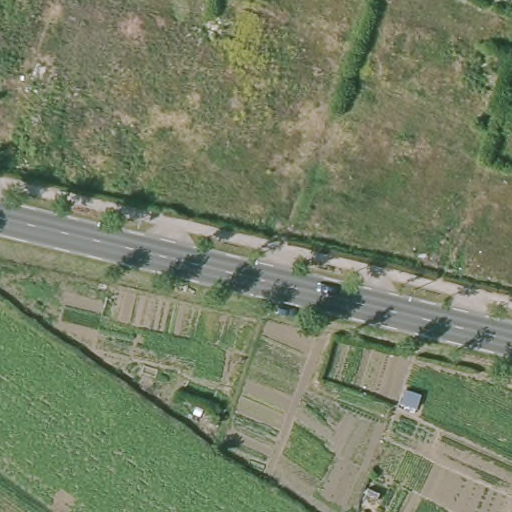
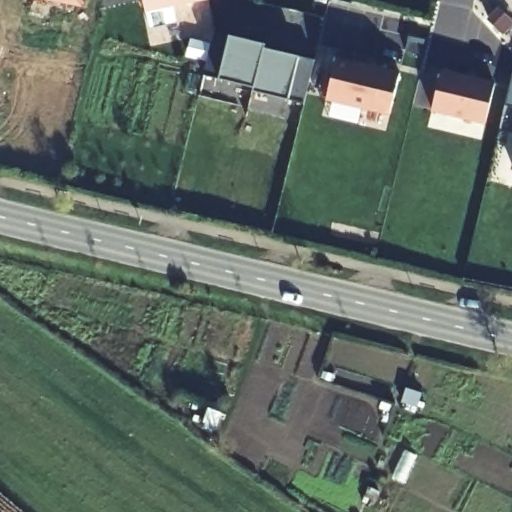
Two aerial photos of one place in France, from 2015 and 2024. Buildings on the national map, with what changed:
new [(82,7),(46,0),(84,0),(82,7)]
new [(206,5),(145,14),(142,0),(205,0),(206,5)]
new [(303,102),(288,98),(252,89),(253,85),(220,76),(203,73),(206,61),(185,56),(191,37),(211,43),(214,32),(230,34),(265,43),(265,47),(298,55),(315,59),(303,102)]
new [(400,79),(390,122),(327,105),(336,63),(400,79)]
new [(442,67),(495,81),(485,124),(431,111),(442,67)]

